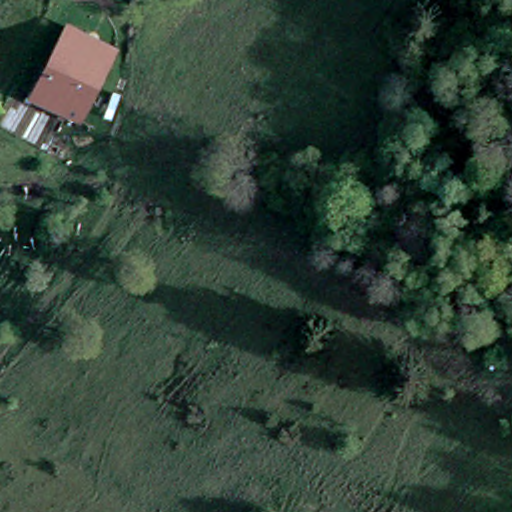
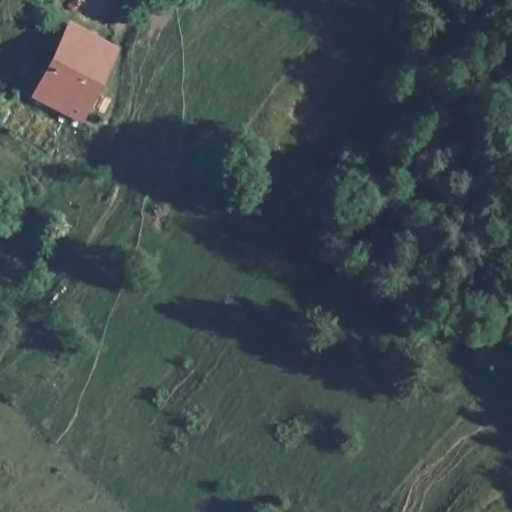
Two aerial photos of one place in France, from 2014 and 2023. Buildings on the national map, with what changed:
unchanged [(82,123),(34,104),(65,29),(110,48),(82,123)]

